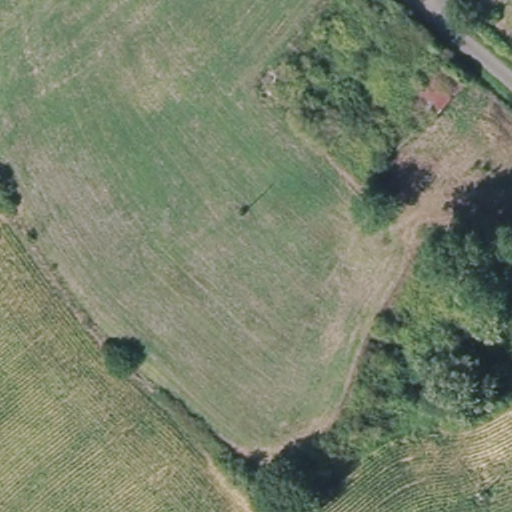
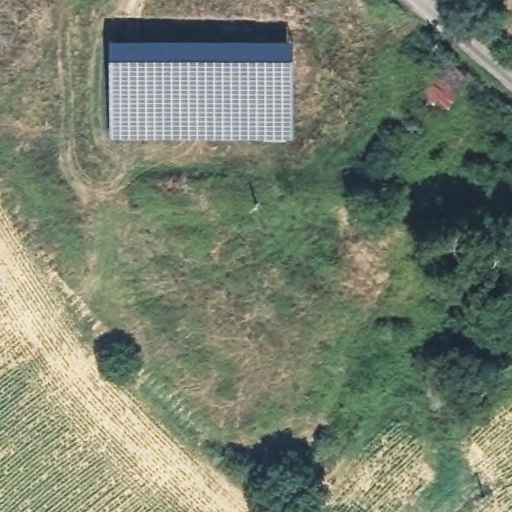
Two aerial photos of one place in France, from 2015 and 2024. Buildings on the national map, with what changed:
new [(295,39),(291,137),(111,138),(110,38),(295,39)]
unchanged [(443,57),(470,80),(432,126),(405,100),(443,57)]

